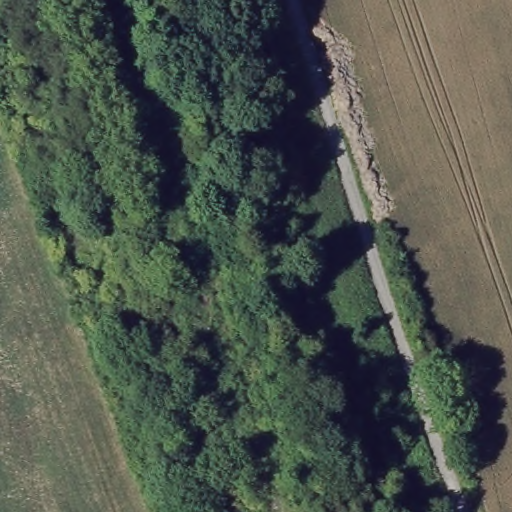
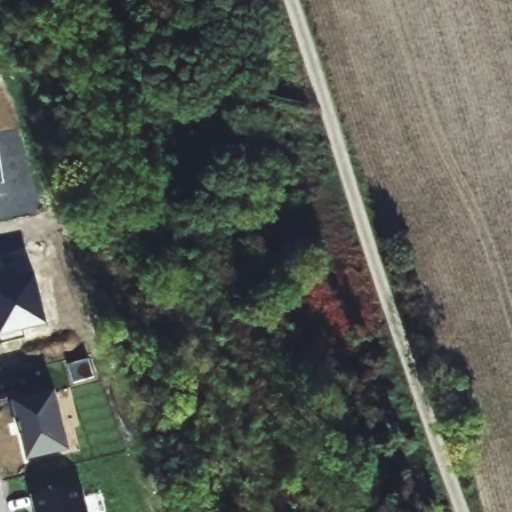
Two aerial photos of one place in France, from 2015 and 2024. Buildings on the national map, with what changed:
new [(0,181),(0,165),(4,180),(0,181)]
new [(1,334),(0,328),(0,294),(2,293),(0,284),(36,275),(48,323),(1,334)]
new [(70,447),(28,458),(14,399),(56,389),(70,447)]
new [(82,483),(89,512),(37,512),(32,495),(82,483)]

